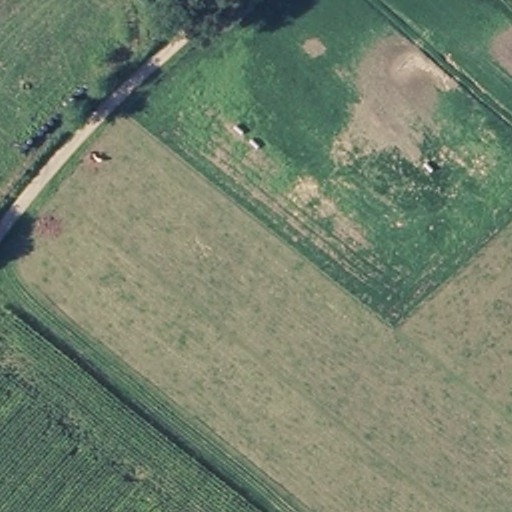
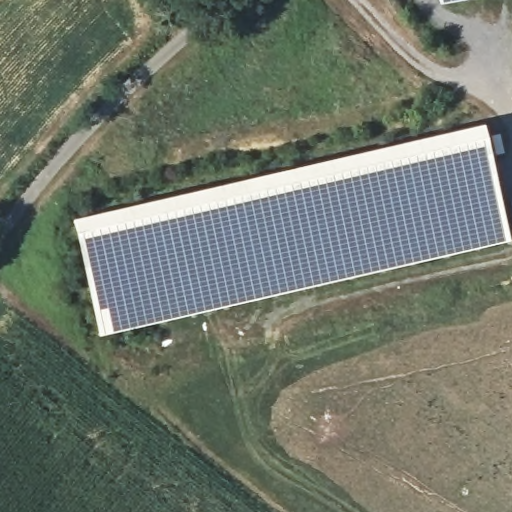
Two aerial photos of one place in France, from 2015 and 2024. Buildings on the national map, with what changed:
new [(442,5),(441,0),(468,0),(442,5)]
new [(70,221),(482,126),(509,244),(97,339),(70,221)]

